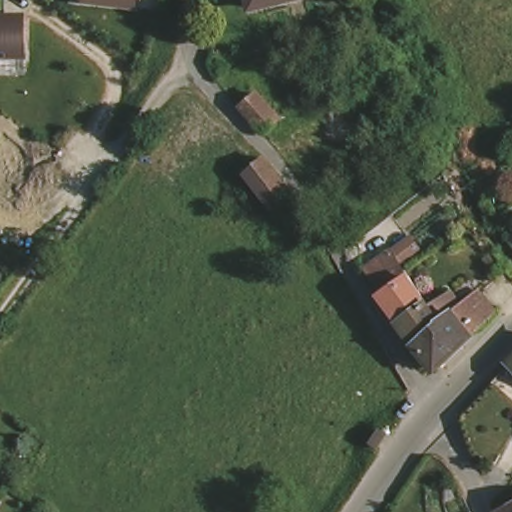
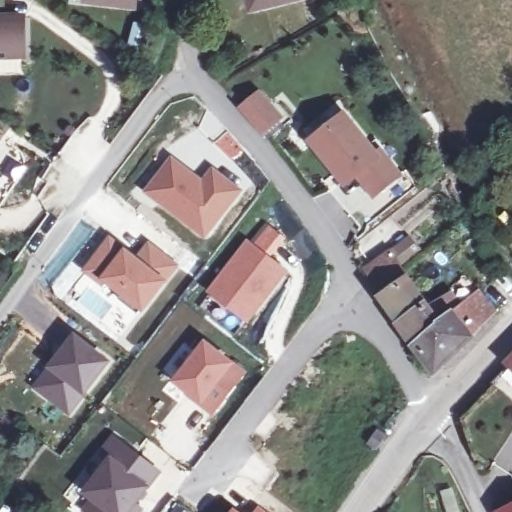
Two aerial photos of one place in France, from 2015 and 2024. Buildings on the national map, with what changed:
unchanged [(5,0),(5,9),(25,9),(27,64),(0,67),(0,0),(5,0)]
unchanged [(81,4),(82,0),(134,0),(133,9),(81,4)]
unchanged [(302,0),(255,14),(252,0),(302,0)]
unchanged [(247,111),(261,98),(283,121),(271,133),(247,111)]
new [(348,119),(378,158),(382,155),(400,179),(377,197),(360,174),(347,184),(317,143),(348,119)]
new [(171,154),(201,177),(211,164),(245,190),(205,240),(141,190),(171,154)]
demolished [(291,194),(275,207),(260,188),(250,175),(265,161),(291,194)]
new [(247,237),(251,241),(266,222),(285,236),(271,255),(290,270),(247,323),(205,290),(247,237)]
unchanged [(475,339),(438,370),(420,343),(405,322),(366,268),(395,248),(413,235),(423,247),(403,260),(405,263),(430,300),(445,321),(481,290),(498,312),(475,339)]
new [(110,241),(137,262),(150,247),(175,265),(137,314),(119,299),(121,297),(88,271),(110,241)]
new [(73,330),(112,361),(69,417),(31,387),(73,330)]
new [(206,344),(243,373),(215,409),(178,381),(206,344)]
unchanged [(512,359),(512,362),(510,361),(512,359)]
new [(137,503),(145,509),(142,512),(104,512),(80,494),(109,454),(100,447),(113,431),(142,454),(162,471),(137,503)]
new [(257,504),(268,512),(251,512),(257,504)]
new [(235,508),(241,512),(231,512),(235,508)]

